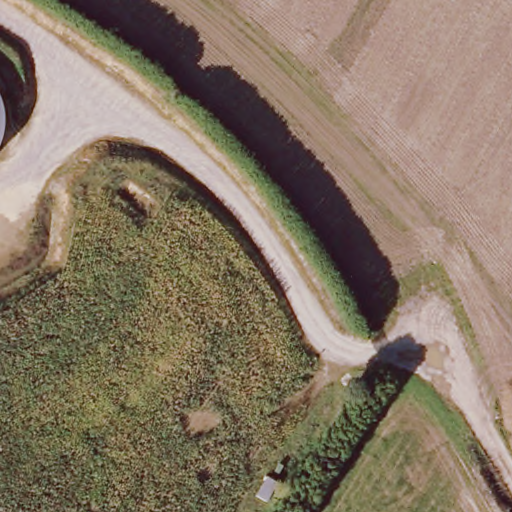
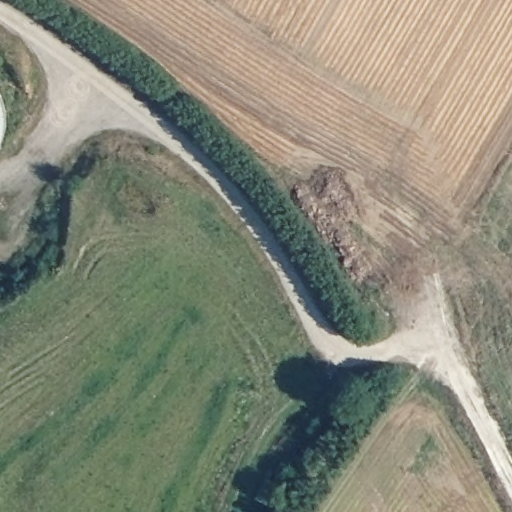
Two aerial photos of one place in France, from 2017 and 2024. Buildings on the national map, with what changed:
unchanged [(272,468),(275,471),(270,479),(267,477),(272,468)]
unchanged [(260,482),(270,488),(259,506),(249,500),(260,482)]

